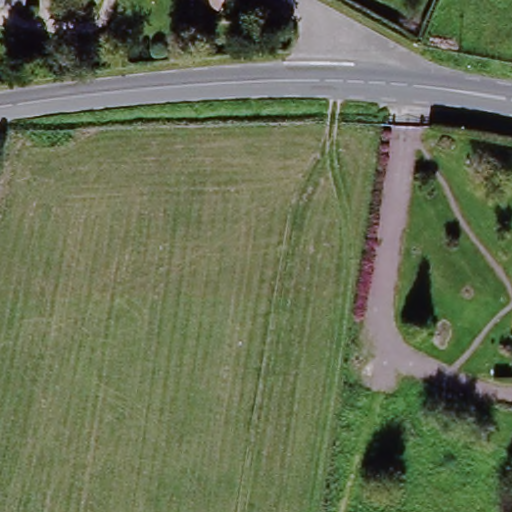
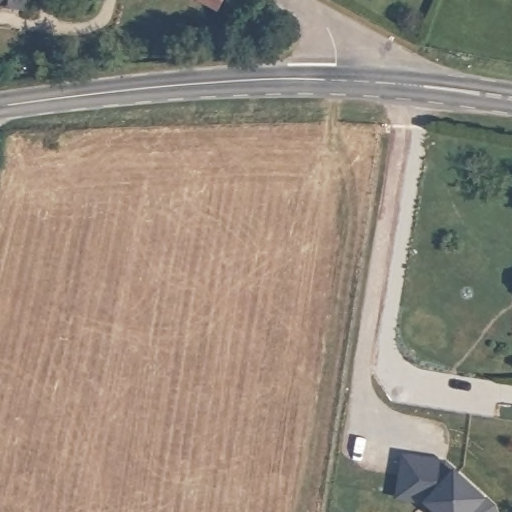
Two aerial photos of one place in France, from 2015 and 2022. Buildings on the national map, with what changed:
unchanged [(21,14),(0,11),(0,0),(23,0),(21,14)]
unchanged [(220,10),(201,0),(226,0),(220,10)]
new [(404,492),(411,451),(452,458),(462,466),(500,502),(503,512),(449,512),(434,497),(404,492)]

